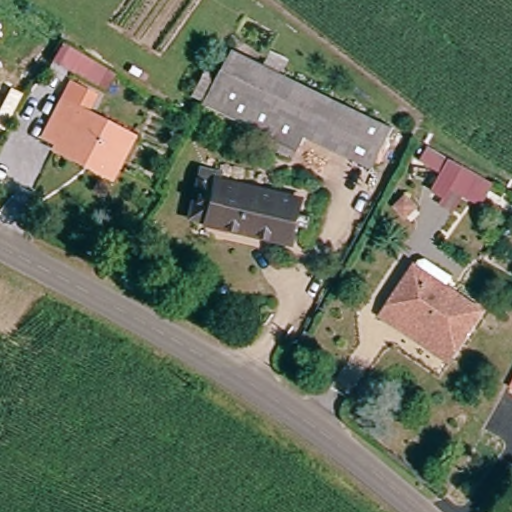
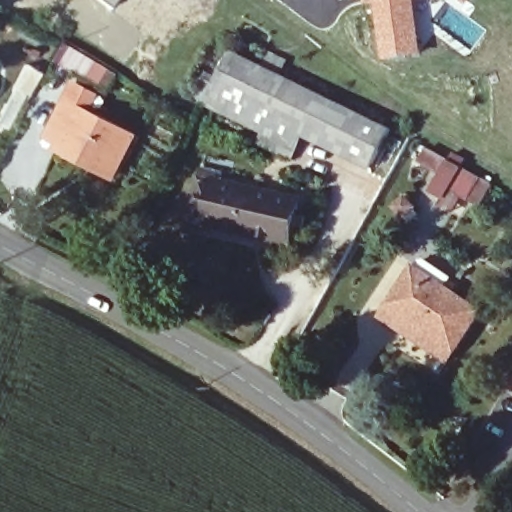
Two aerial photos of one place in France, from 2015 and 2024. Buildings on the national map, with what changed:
new [(109,9),(96,0),(115,0),(109,9)]
new [(422,55),(382,60),(373,2),(366,4),(366,0),(415,0),(422,55)]
new [(465,4),(460,0),(469,0),(465,4)]
unchanged [(72,46),(94,59),(106,66),(96,83),(62,63),(72,46)]
unchanged [(399,133),(383,167),(370,160),(367,165),(300,135),(290,157),(252,137),(257,128),(217,109),(212,122),(196,116),(230,50),(399,133)]
new [(23,63),(41,73),(28,98),(10,89),(23,63)]
unchanged [(132,136),(110,177),(95,168),(97,160),(45,136),(64,100),(132,136)]
unchanged [(488,186),(477,204),(446,187),(442,192),(429,185),(431,178),(426,175),(436,157),(488,186)]
unchanged [(296,198),(287,241),(193,221),(202,178),(296,198)]
unchanged [(442,361),(378,317),(410,271),(417,270),(443,287),(437,297),(470,320),(442,361)]

